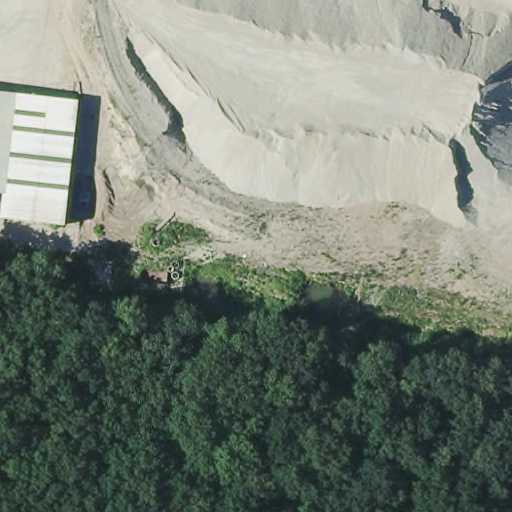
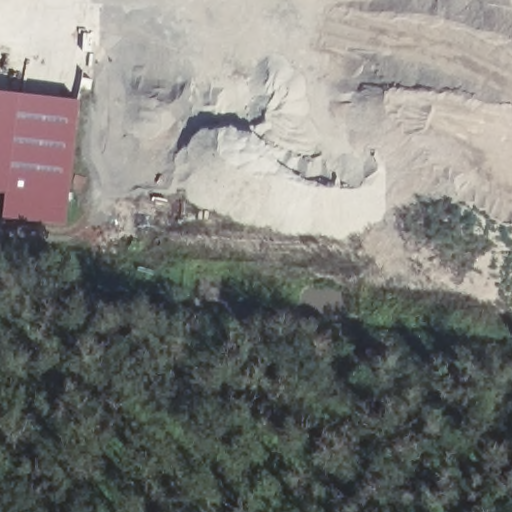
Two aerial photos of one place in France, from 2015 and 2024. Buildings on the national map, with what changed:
unchanged [(0,211),(1,197),(0,197),(0,93),(83,105),(68,227),(0,221),(0,211)]

